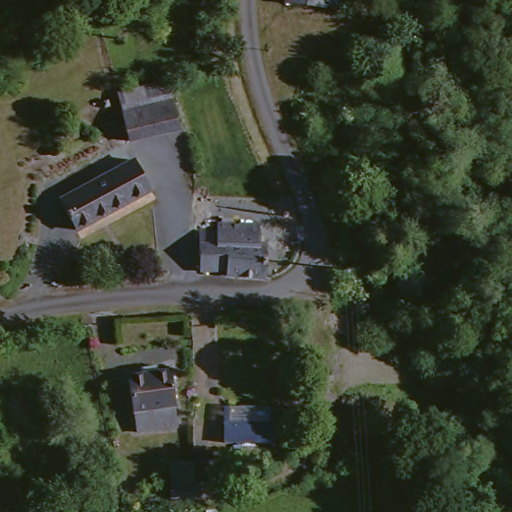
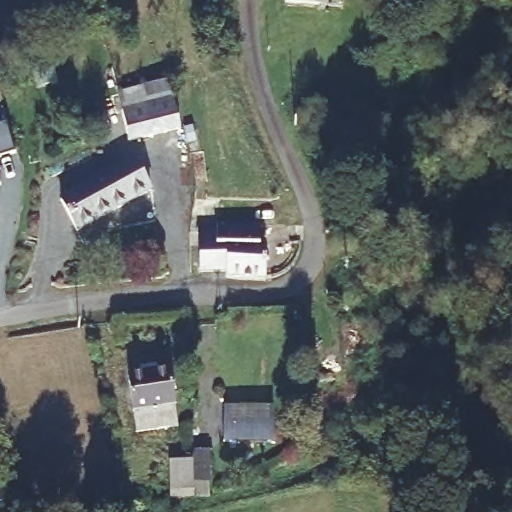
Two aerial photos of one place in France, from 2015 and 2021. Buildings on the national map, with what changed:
unchanged [(333,6),(289,3),(290,0),(333,0),(333,6)]
unchanged [(165,89),(167,87),(167,88),(179,121),(126,137),(114,103),(165,89)]
unchanged [(345,110),(350,124),(336,129),(332,114),(345,110)]
new [(6,124),(13,152),(0,156),(0,125),(6,124)]
unchanged [(65,197),(130,159),(147,189),(144,191),(76,232),(59,202),(65,197)]
unchanged [(207,240),(272,242),(270,270),(253,271),(252,276),(194,272),(195,239),(207,240)]
unchanged [(161,417),(156,418),(158,431),(139,434),(131,372),(141,372),(140,365),(154,362),(155,370),(170,368),(173,401),(175,416),(161,417)]
unchanged [(274,442),(221,442),(221,410),(273,409),(274,442)]
unchanged [(191,498),(167,498),(165,462),(189,462),(191,498)]
unchanged [(15,482),(21,507),(0,511),(0,486),(15,482)]

